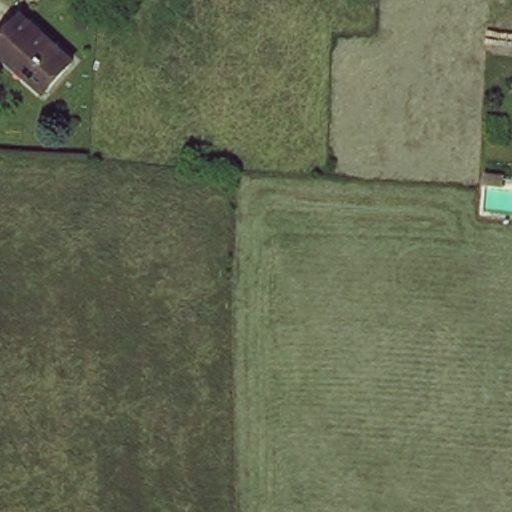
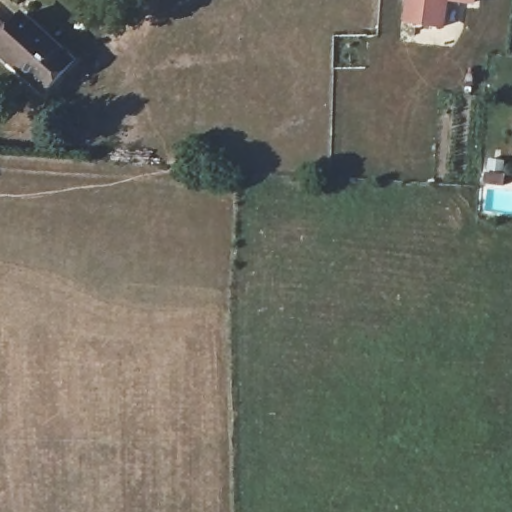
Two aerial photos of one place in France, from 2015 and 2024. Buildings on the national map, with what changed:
new [(450,1),(445,28),(403,23),(407,0),(476,0),(476,4),(450,1)]
unchanged [(22,16),(74,61),(45,92),(0,53),(0,42),(22,16)]

